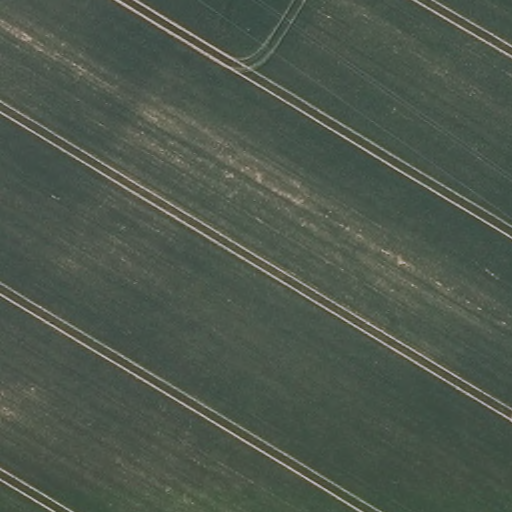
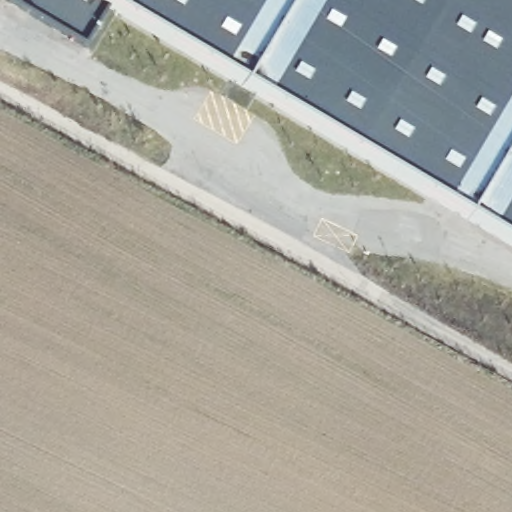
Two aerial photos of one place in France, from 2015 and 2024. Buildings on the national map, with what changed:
new [(108,6),(82,49),(4,0),(512,0),(512,244),(108,6)]

